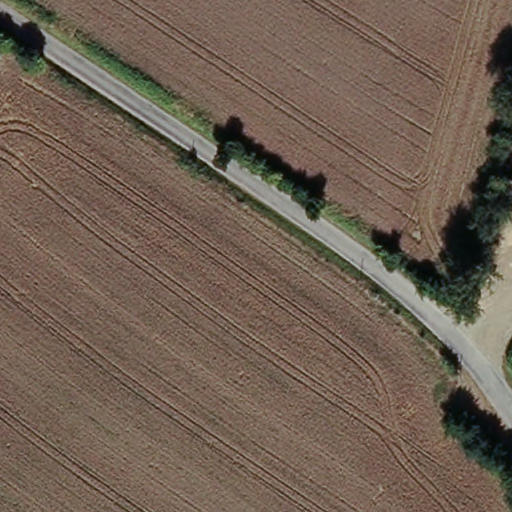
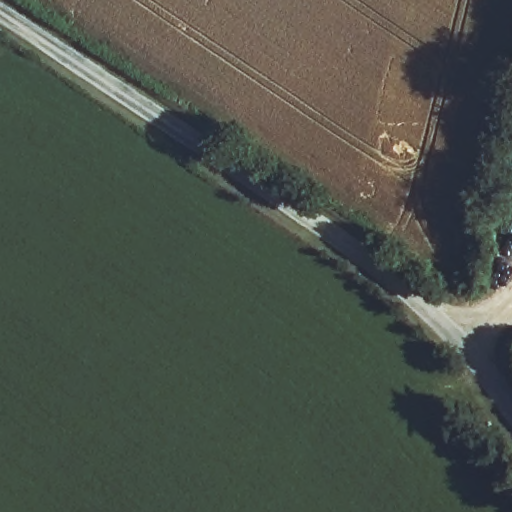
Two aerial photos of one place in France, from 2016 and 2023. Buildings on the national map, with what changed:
[]

